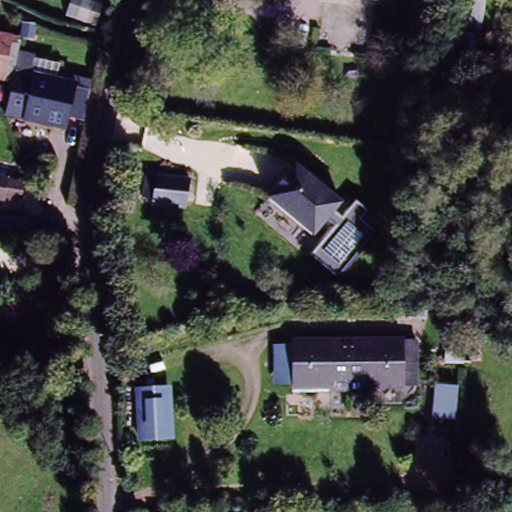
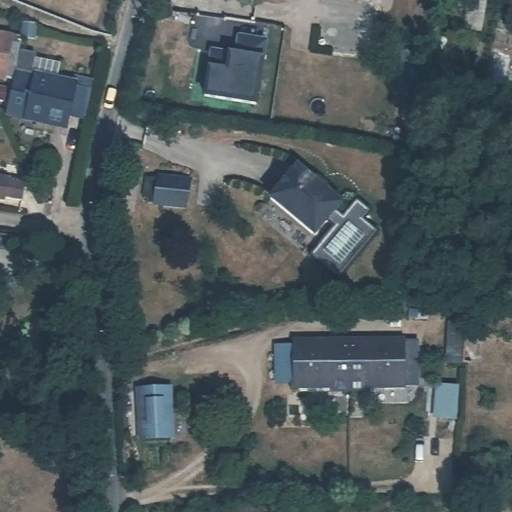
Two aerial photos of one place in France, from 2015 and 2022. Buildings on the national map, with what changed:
unchanged [(381,1),(375,0),(382,0),(381,1)]
unchanged [(479,32),(464,29),(468,0),(484,0),(479,32)]
unchanged [(28,22),(35,24),(35,25),(31,45),(19,42),(23,21),(28,22)]
unchanged [(0,79),(0,35),(11,38),(3,80),(0,79)]
unchanged [(477,38),(472,60),(461,58),(465,36),(477,38)]
new [(213,54),(236,57),(238,39),(265,44),(255,106),(204,98),(213,54)]
unchanged [(35,54),(31,73),(70,81),(73,76),(92,80),(84,120),(72,118),(70,117),(67,130),(21,120),(5,116),(5,115),(12,82),(19,51),(35,54)]
unchanged [(344,196),(316,235),(271,199),(296,160),(344,196)]
unchanged [(26,198),(11,197),(11,201),(0,199),(0,177),(8,179),(29,184),(26,198)]
unchanged [(186,210),(166,208),(153,206),(153,200),(143,199),(144,186),(145,180),(155,181),(155,178),(189,181),(186,210)]
unchanged [(445,362),(449,322),(465,324),(464,336),(463,343),(461,363),(445,362)]
unchanged [(333,343),(351,343),(361,343),(403,342),(403,344),(403,376),(404,387),(404,389),(368,390),(368,393),(330,393),(330,390),(294,391),(294,384),(278,384),(278,349),(293,349),(293,343),(333,343)]
unchanged [(417,343),(417,387),(408,387),(404,387),(403,377),(403,344),(417,343)]
unchanged [(172,441),(140,442),(138,389),(170,389),(172,441)]

